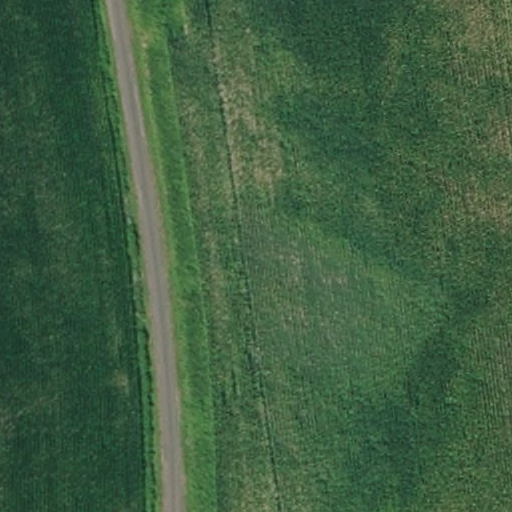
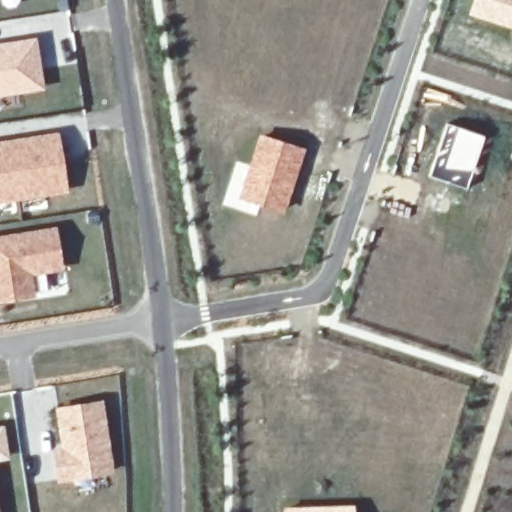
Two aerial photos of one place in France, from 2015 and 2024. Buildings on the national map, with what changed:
new [(472,0),(512,0),(512,30),(467,14),(472,0)]
new [(45,89),(0,96),(0,42),(38,36),(45,89)]
new [(444,123),(483,136),(465,188),(428,175),(444,123)]
new [(69,192),(0,203),(0,140),(59,131),(69,192)]
new [(258,132),(306,147),(284,213),(235,197),(258,132)]
new [(26,271),(30,294),(0,298),(0,239),(53,230),(59,266),(26,271)]
new [(99,403),(110,470),(106,471),(109,486),(74,491),(72,477),(59,480),(55,452),(64,450),(58,409),(99,403)]
new [(9,458),(0,459),(0,425),(3,424),(9,458)]
new [(355,512),(283,512),(283,506),(354,503),(355,512)]

